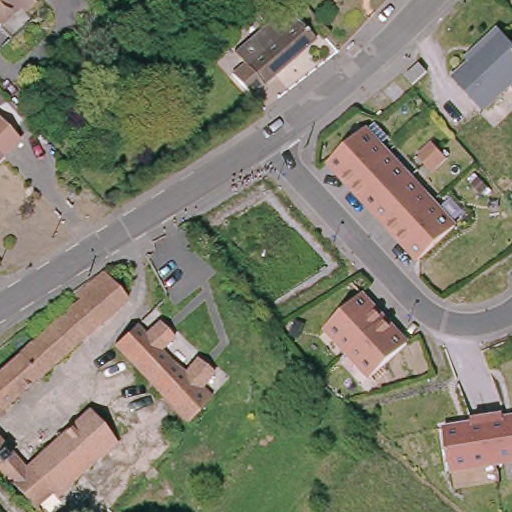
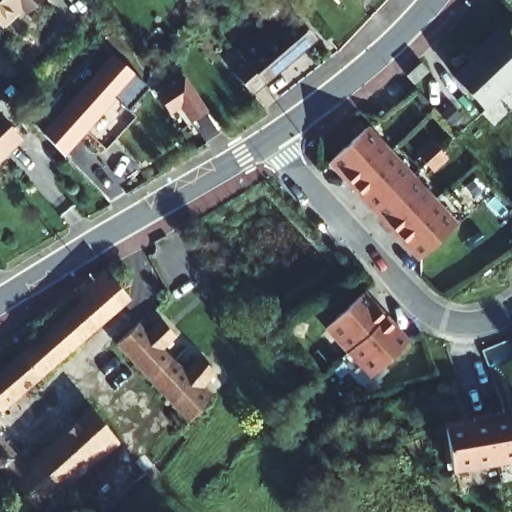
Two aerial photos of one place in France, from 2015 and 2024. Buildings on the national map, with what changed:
unchanged [(0,21),(0,0),(20,0),(28,9),(8,29),(0,21)]
unchanged [(259,81),(241,61),(253,50),(250,47),(243,39),(288,0),(296,0),(299,3),(319,26),(259,81)]
unchanged [(480,36),(487,36),(489,34),(512,57),(512,74),(472,112),(441,80),(472,50),(472,44),(480,36)]
unchanged [(201,39),(209,51),(196,62),(186,51),(201,39)]
new [(148,87),(128,110),(115,99),(66,155),(42,132),(113,54),(148,87)]
new [(208,112),(190,125),(181,109),(169,116),(156,94),(186,76),(208,112)]
unchanged [(20,140),(3,156),(0,152),(0,118),(20,140)]
unchanged [(368,129),(460,224),(425,257),(333,163),(368,129)]
unchanged [(416,146),(429,160),(423,167),(409,152),(416,146)]
unchanged [(3,156),(0,159),(0,152),(3,156)]
unchanged [(79,293),(104,270),(130,296),(0,421),(0,370),(66,306),(61,301),(75,290),(79,293)]
unchanged [(363,293),(409,341),(374,375),(327,327),(363,293)]
unchanged [(176,365),(197,381),(213,392),(210,395),(189,417),(119,342),(138,323),(176,365)]
unchanged [(21,457),(29,448),(38,458),(49,448),(54,452),(92,407),(119,440),(39,511),(31,502),(13,482),(0,467),(0,434),(21,457)]
unchanged [(444,425),(512,414),(512,465),(453,473),(444,425)]

